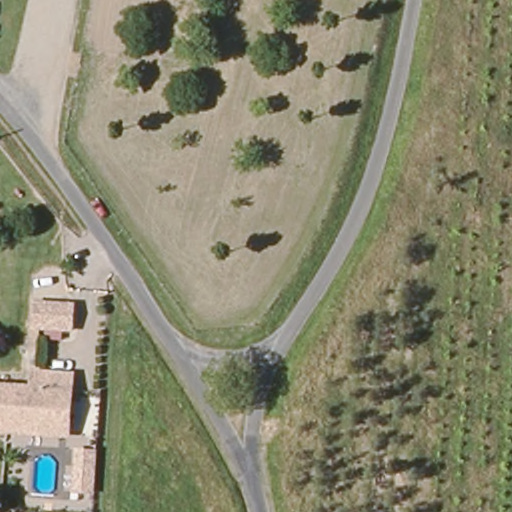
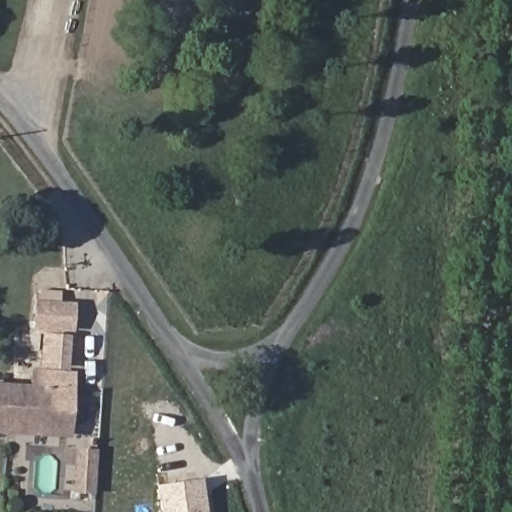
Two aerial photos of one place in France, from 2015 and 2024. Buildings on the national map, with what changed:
unchanged [(72,304),(71,330),(33,328),(34,302),(72,304)]
unchanged [(0,430),(0,386),(35,387),(37,371),(76,373),(75,390),(73,433),(57,432),(20,431),(0,430)]
new [(79,450),(97,451),(94,491),(76,490),(79,450)]
new [(202,478),(207,512),(161,512),(157,485),(202,478)]

